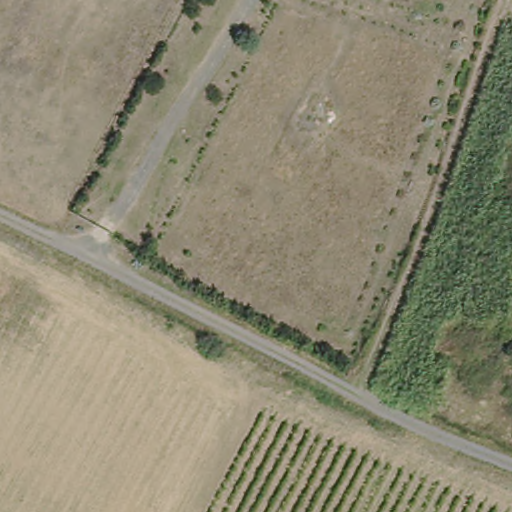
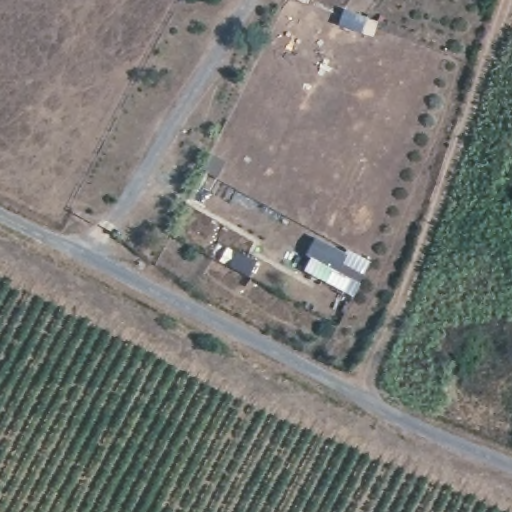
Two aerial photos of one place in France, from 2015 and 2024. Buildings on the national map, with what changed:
new [(349,297),(302,273),(308,262),(303,259),(315,236),(366,262),(349,297)]

